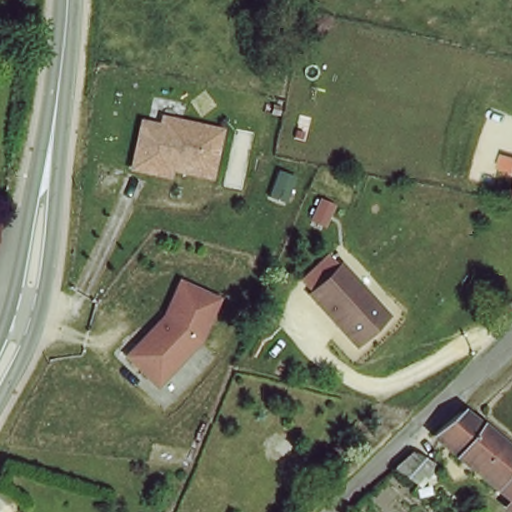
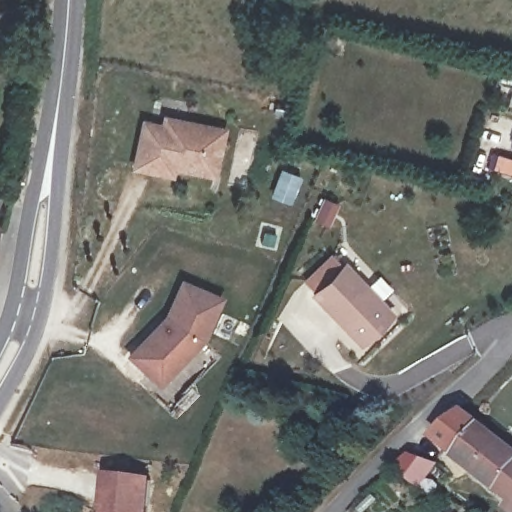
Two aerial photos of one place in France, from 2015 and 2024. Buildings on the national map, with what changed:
unchanged [(214,184),(124,166),(130,116),(152,120),(154,110),(221,126),(214,184)]
unchanged [(387,316),(356,345),(309,295),(340,265),(387,316)]
unchanged [(201,344),(157,385),(122,355),(160,312),(181,276),(223,297),(201,344)]
unchanged [(512,482),(503,493),(440,438),(465,415),(512,452),(512,482)]
unchanged [(427,461),(440,464),(432,474),(442,485),(436,491),(426,483),(421,488),(404,473),(422,456),(427,461)]
new [(104,471),(152,477),(148,512),(99,512),(104,471)]
unchanged [(512,482),(512,500),(503,493),(512,482)]

